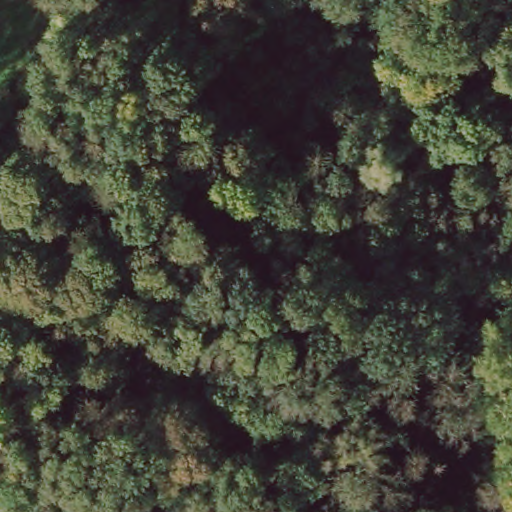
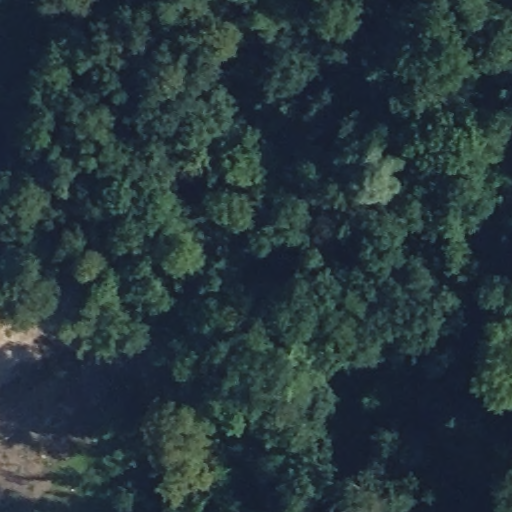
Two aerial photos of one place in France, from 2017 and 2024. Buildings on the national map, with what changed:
unchanged [(41,74),(132,89),(128,119),(34,104),(38,77),(41,74)]

